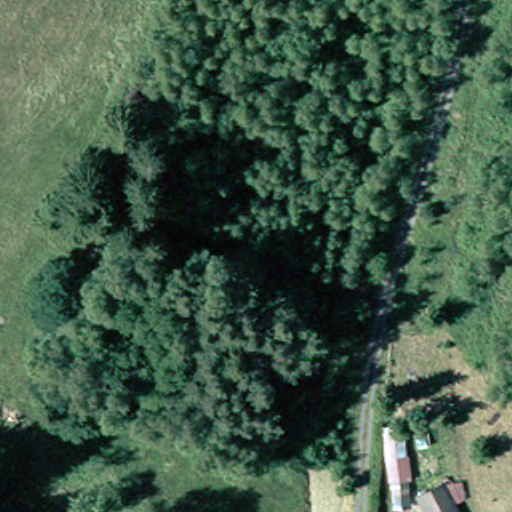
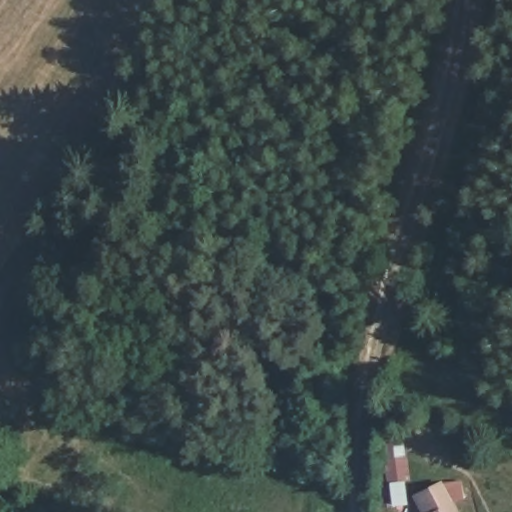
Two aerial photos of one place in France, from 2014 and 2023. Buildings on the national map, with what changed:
unchanged [(468,482),(468,501),(458,503),(463,512),(433,512),(426,500),(450,485),(468,482)]

